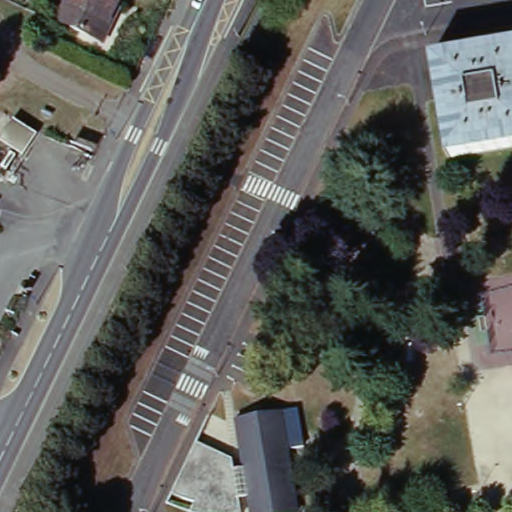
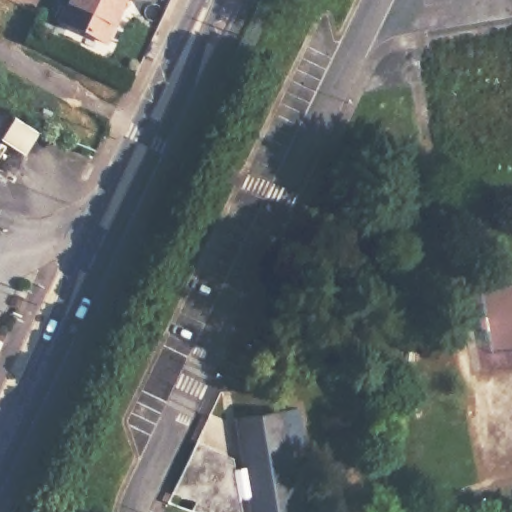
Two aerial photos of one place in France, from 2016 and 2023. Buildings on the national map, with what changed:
unchanged [(120,0),(101,39),(59,19),(68,0),(120,0)]
demolished [(512,44),(512,151),(452,161),(433,57),(512,44)]
unchanged [(12,124),(36,136),(25,159),(0,147),(12,124)]
unchanged [(200,442),(240,462),(241,471),(250,468),(241,420),(288,412),(304,511),(295,512),(256,512),(252,498),(245,500),(247,512),(198,512),(201,505),(175,495),(200,442)]

